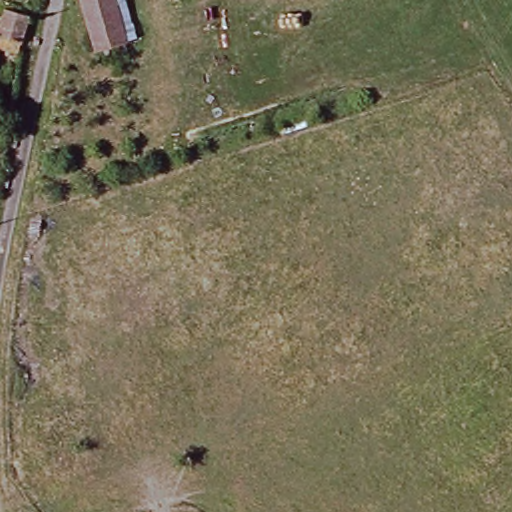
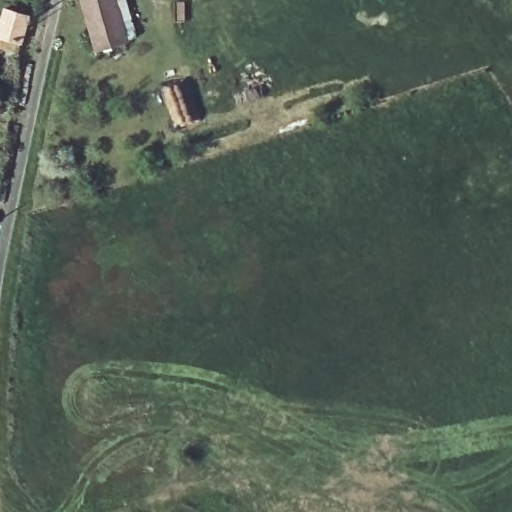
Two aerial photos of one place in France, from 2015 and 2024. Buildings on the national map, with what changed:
unchanged [(91,54),(76,0),(108,0),(123,44),(91,54)]
unchanged [(0,44),(0,15),(28,23),(20,51),(0,44)]

